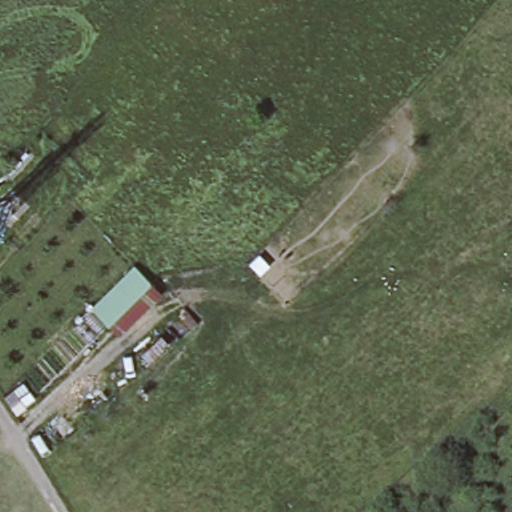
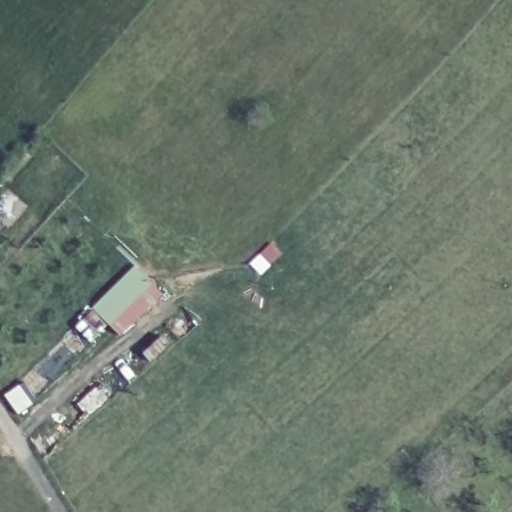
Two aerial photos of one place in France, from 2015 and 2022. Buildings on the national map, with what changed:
unchanged [(93,309),(137,264),(154,283),(109,327),(93,309)]

